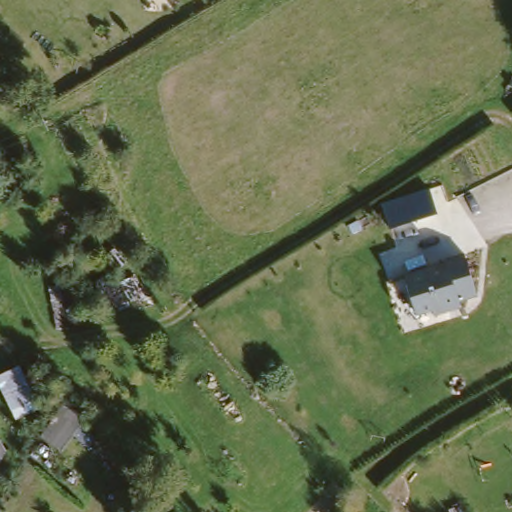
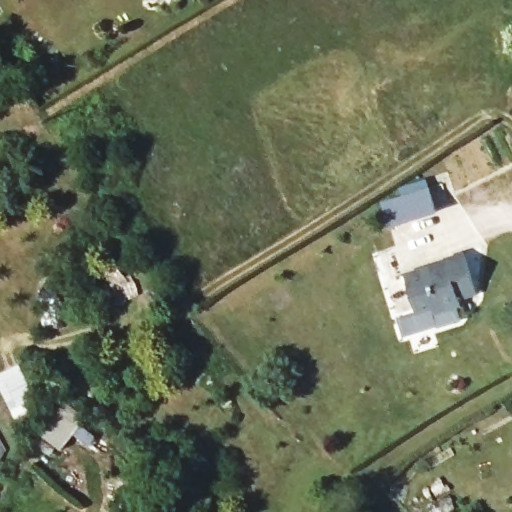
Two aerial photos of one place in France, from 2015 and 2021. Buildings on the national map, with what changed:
unchanged [(391,228),(378,190),(425,174),(437,212),(391,228)]
unchanged [(444,261),(444,258),(465,254),(472,297),(450,301),(451,309),(427,312),(426,307),(408,310),(401,270),(444,261)]
unchanged [(72,400),(91,413),(68,450),(48,437),(72,400)]
unchanged [(0,448),(0,447),(1,447),(0,448)]

